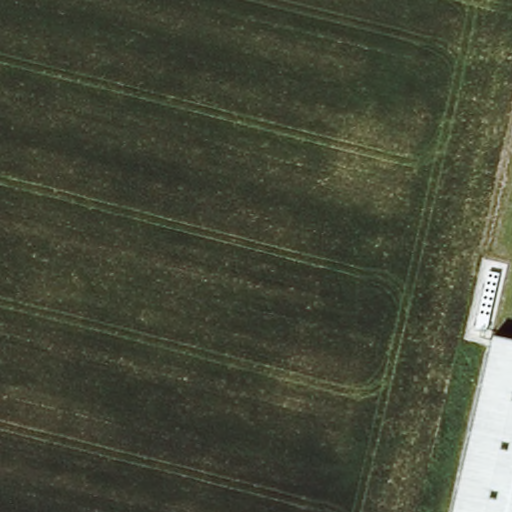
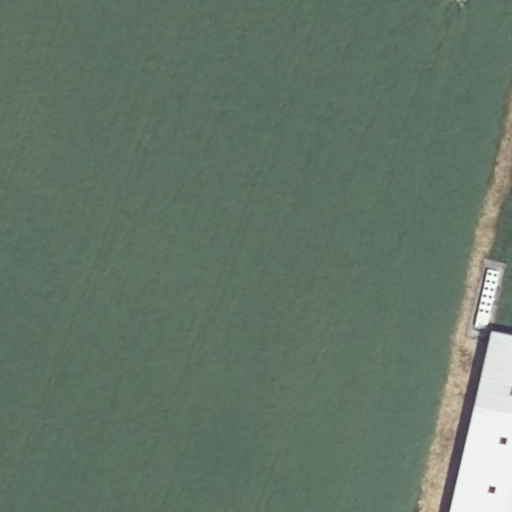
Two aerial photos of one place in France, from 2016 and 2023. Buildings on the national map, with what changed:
unchanged [(493,346),(512,350),(512,512),(454,512),(493,346)]

